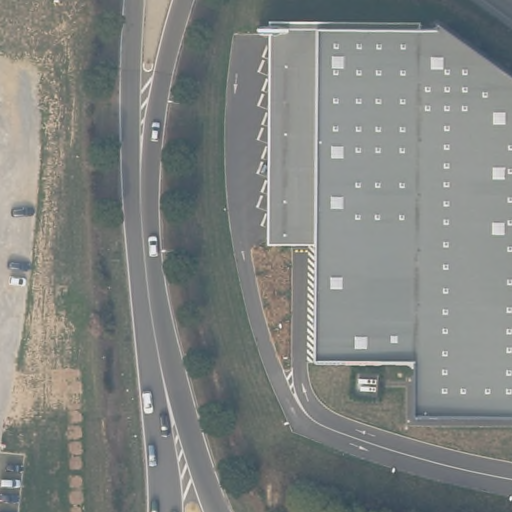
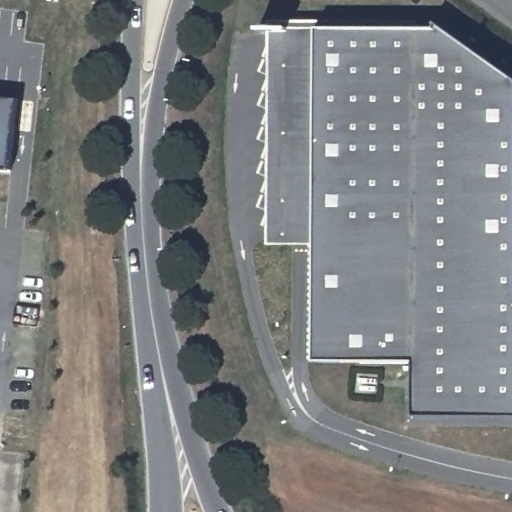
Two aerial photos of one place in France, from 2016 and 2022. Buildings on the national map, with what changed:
unchanged [(269,244),(271,21),(422,22),(422,31),(319,31),(318,245),(269,244)]
unchanged [(317,362),(319,31),(447,31),(512,76),(512,420),(413,419),(414,362),(317,362)]
new [(0,169),(0,98),(17,100),(10,171),(0,169)]

